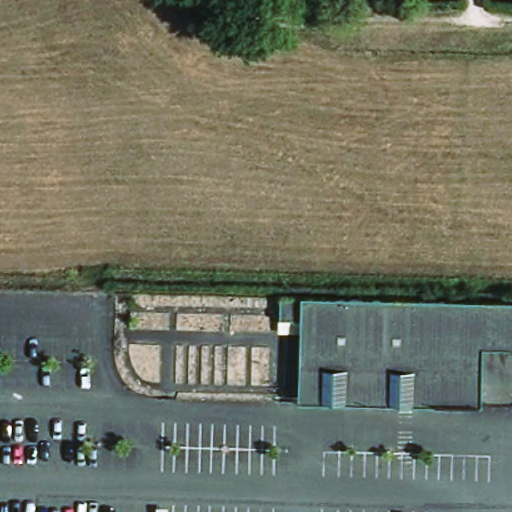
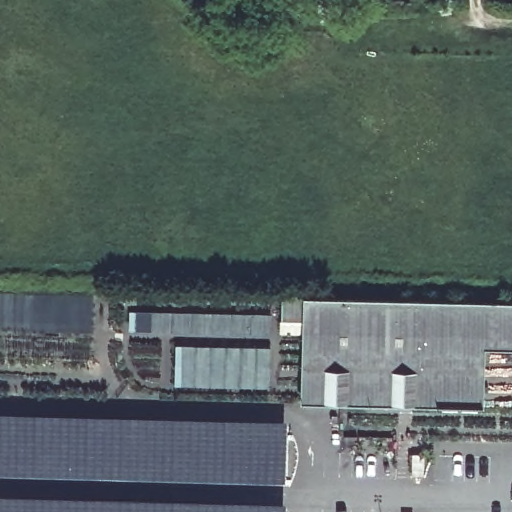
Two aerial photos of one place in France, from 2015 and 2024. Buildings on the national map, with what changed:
unchanged [(512,354),(487,354),(486,376),(317,371),(305,371),(307,303),(512,308),(512,354)]
new [(128,309),(271,314),(270,336),(188,334),(128,330),(128,309)]
new [(175,344),(270,347),(268,388),(174,386),(175,344)]
unchanged [(317,371),(486,376),(485,412),(305,408),(305,371),(317,371)]
new [(285,420),(284,486),(0,478),(0,411),(285,420)]

